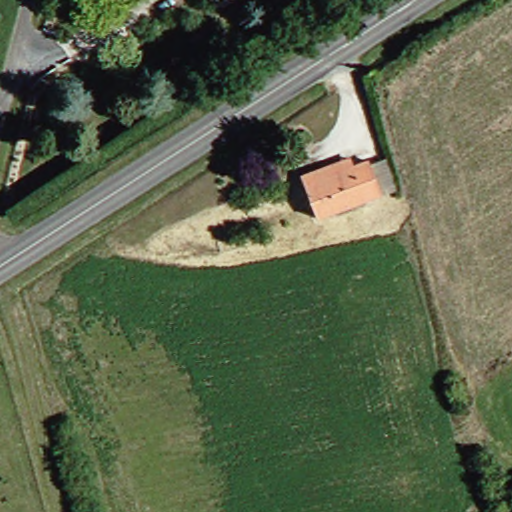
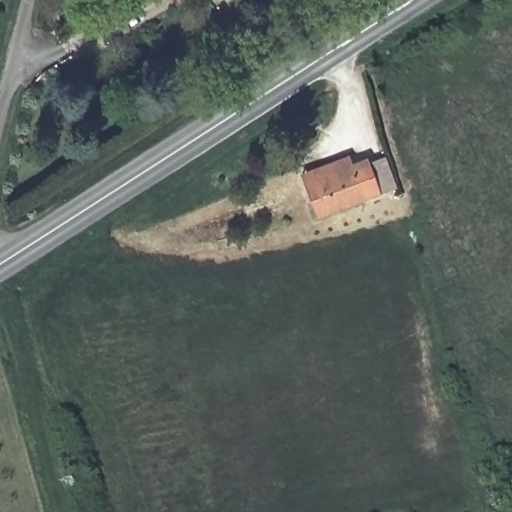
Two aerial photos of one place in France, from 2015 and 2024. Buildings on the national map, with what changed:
unchanged [(388,196),(326,222),(310,190),(305,177),(352,155),(359,167),(372,161),(388,196)]

